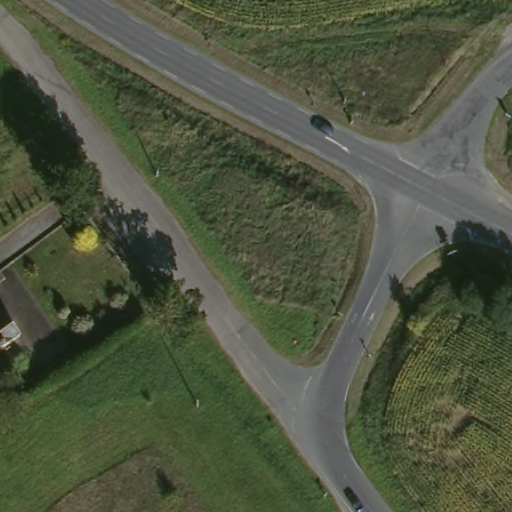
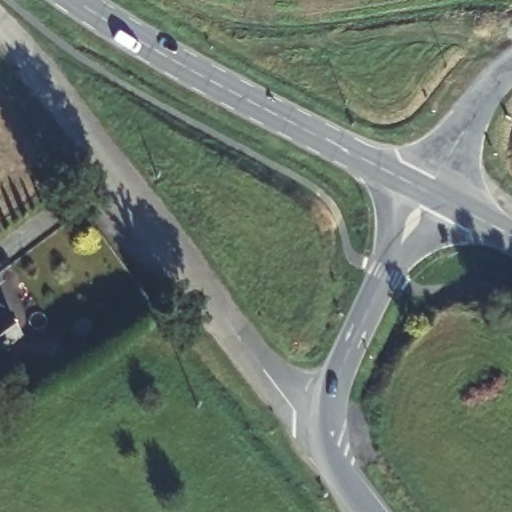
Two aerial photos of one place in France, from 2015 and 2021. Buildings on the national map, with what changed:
unchanged [(1,318),(16,339),(0,351),(0,319),(1,318)]

